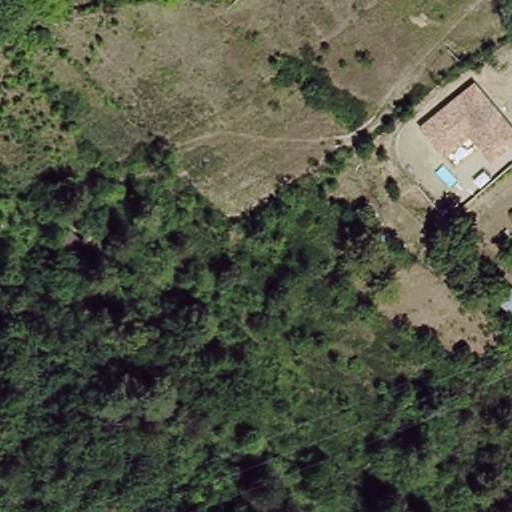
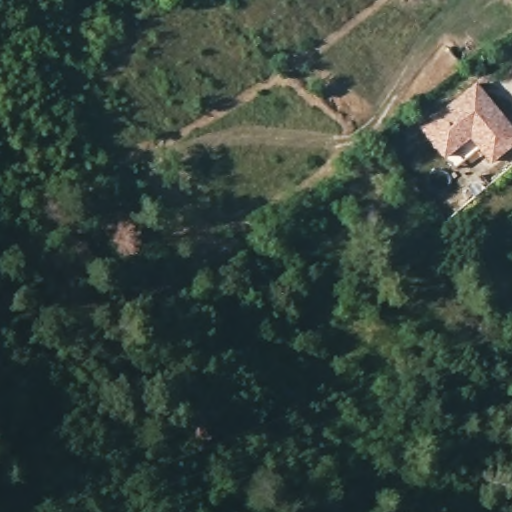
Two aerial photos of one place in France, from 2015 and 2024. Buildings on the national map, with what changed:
unchanged [(489,103),(500,110),(512,132),(512,153),(493,163),(469,140),(444,160),(416,127),(475,79),(489,103)]
unchanged [(496,303),(507,290),(512,294),(512,318),(503,310),(496,303)]

